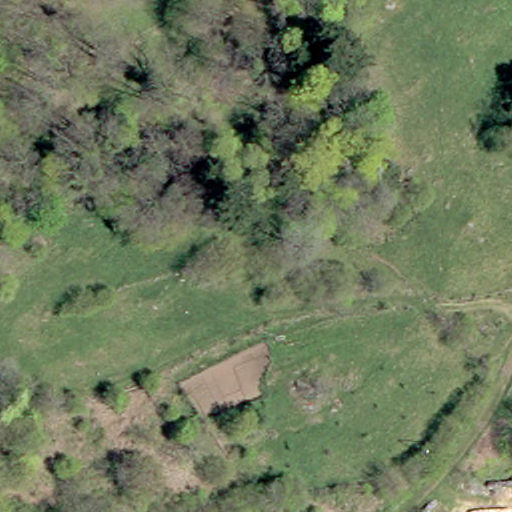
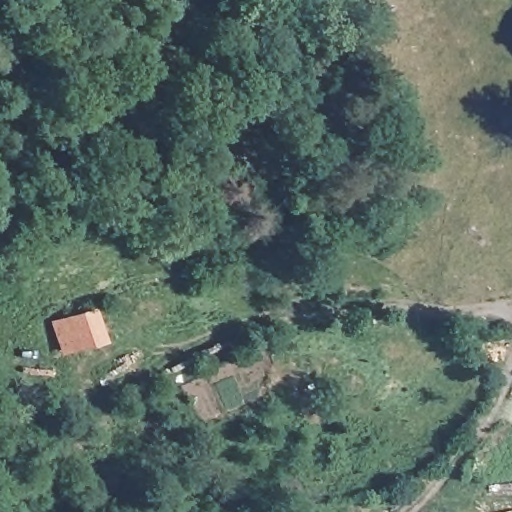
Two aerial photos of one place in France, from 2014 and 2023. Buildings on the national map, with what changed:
new [(97,310),(105,342),(61,355),(51,322),(97,310)]

